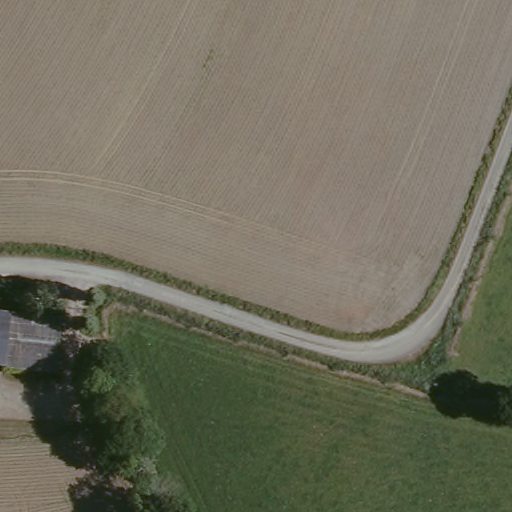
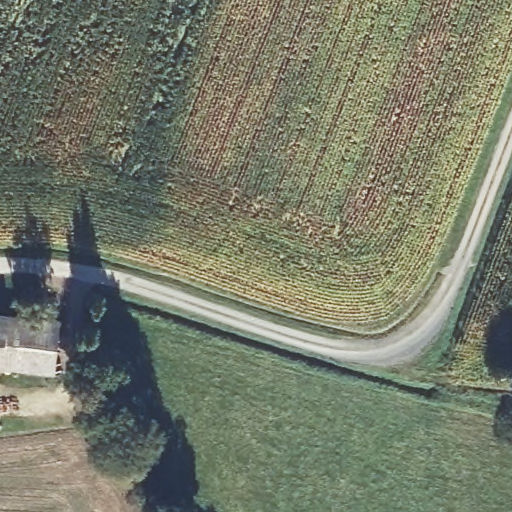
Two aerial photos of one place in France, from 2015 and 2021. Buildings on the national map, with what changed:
unchanged [(0,366),(0,313),(6,314),(0,366)]
unchanged [(6,314),(57,319),(51,372),(0,366),(6,314)]

